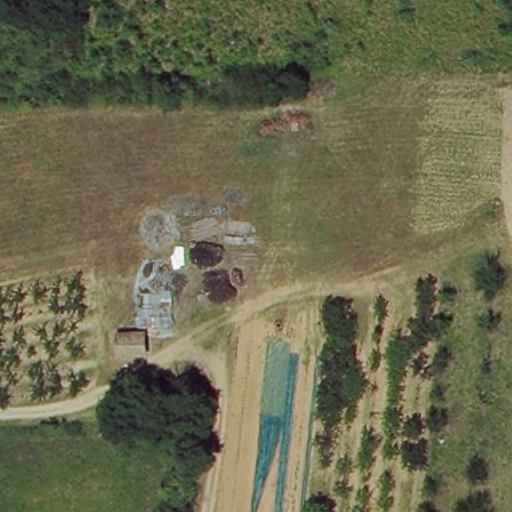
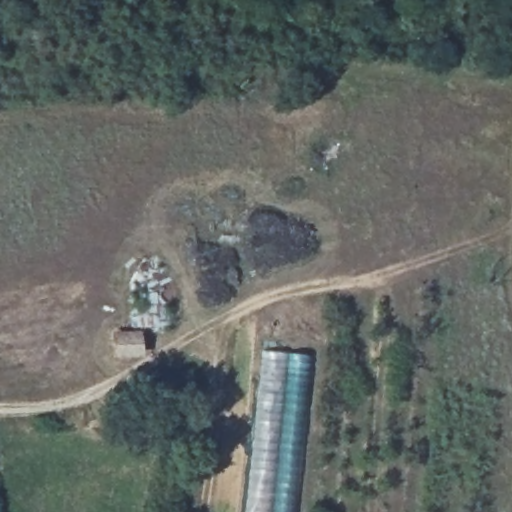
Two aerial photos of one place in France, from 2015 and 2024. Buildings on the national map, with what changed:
unchanged [(146,358),(115,358),(111,329),(145,329),(146,358)]
new [(317,352),(298,512),(243,512),(264,344),(317,352)]

